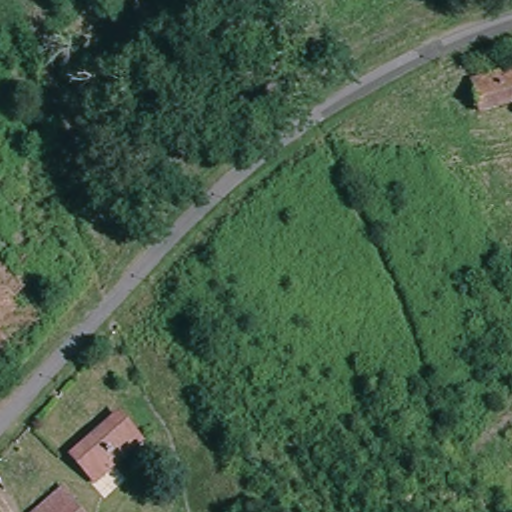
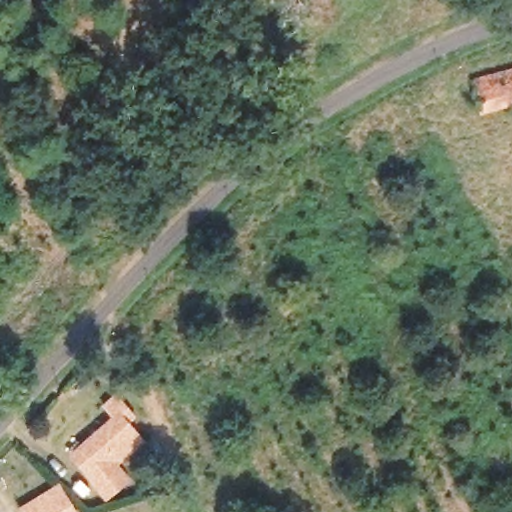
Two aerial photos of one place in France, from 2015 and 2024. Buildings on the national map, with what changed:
unchanged [(475,88),(512,78),(512,104),(481,112),(475,88)]
unchanged [(140,443),(93,485),(71,458),(117,416),(140,443)]
unchanged [(76,498),(72,502),(81,512),(34,512),(65,485),(76,498)]

